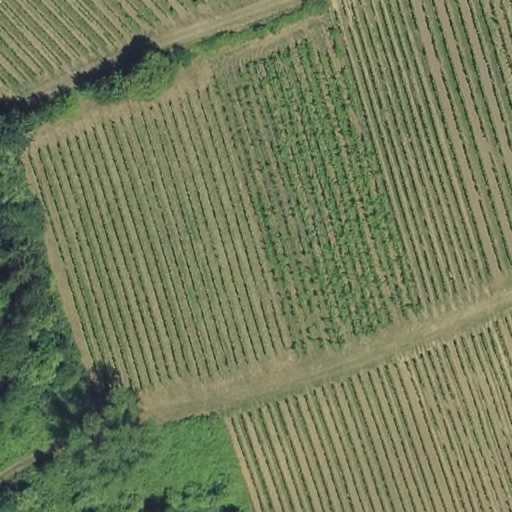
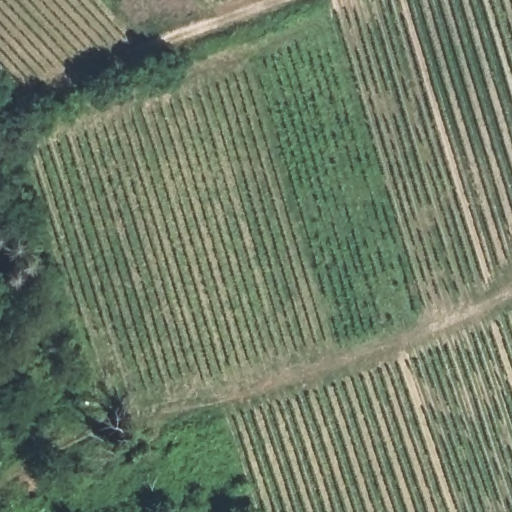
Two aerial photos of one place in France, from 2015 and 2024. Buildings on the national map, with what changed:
unchanged [(0,91),(3,94),(0,95),(0,91)]

